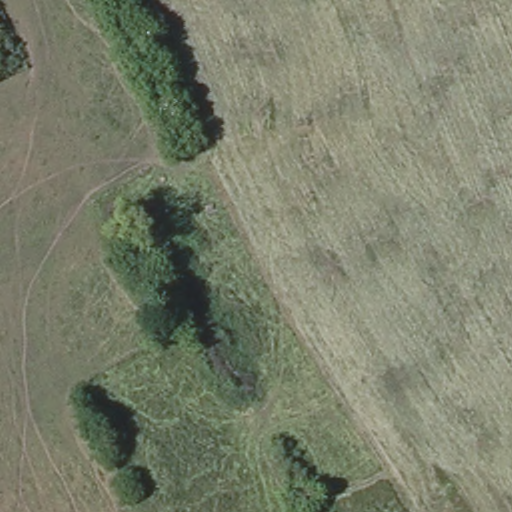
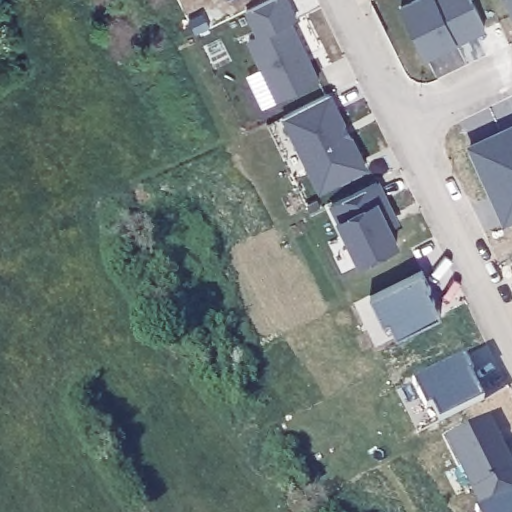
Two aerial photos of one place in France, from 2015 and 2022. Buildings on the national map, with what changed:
new [(225,2),(225,0),(230,0),(225,2)]
new [(245,40),(255,35),(244,11),(268,0),(289,0),(297,18),(291,21),(320,78),(275,99),(245,40)]
new [(410,0),(470,0),(485,30),(425,59),(399,5),(410,0)]
new [(512,4),(510,0),(512,0),(512,4)]
new [(368,166),(319,192),(281,117),(330,92),(368,166)]
new [(512,227),(503,231),(465,149),(512,129),(512,227)]
new [(395,218),(386,223),(382,216),(395,241),(359,259),(330,200),(374,178),(391,211),(395,218)]
new [(441,312),(396,334),(387,317),(382,320),(370,293),(423,267),(441,312)]
new [(484,397),(439,419),(430,403),(425,405),(413,380),(465,355),(484,397)]
new [(486,412),(512,464),(512,487),(482,502),(446,432),(486,412)]
new [(512,512),(477,512),(476,510),(512,493),(512,512)]

